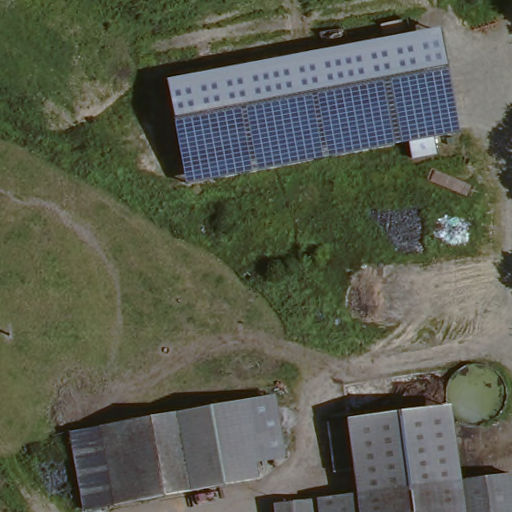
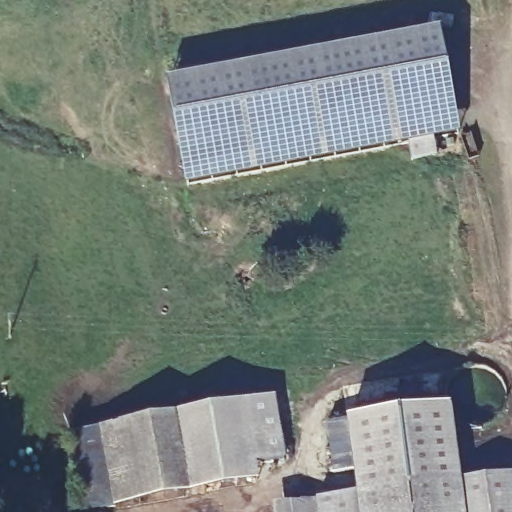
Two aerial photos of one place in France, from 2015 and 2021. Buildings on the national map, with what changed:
unchanged [(166,81),(440,28),(460,132),(186,184),(166,81)]
unchanged [(244,421),(241,405),(271,400),(274,415),(281,462),(252,467),(244,421)]
unchanged [(101,512),(82,512),(69,436),(171,418),(188,415),(241,405),(244,421),(252,467),(255,485),(104,511),(101,512)]
unchanged [(453,407),(461,481),(361,494),(358,470),(351,420),(453,407)]
unchanged [(358,470),(337,473),(331,422),(351,420),(358,470)]
unchanged [(361,494),(461,481),(509,475),(512,495),(512,512),(285,512),(284,503),(361,494)]

